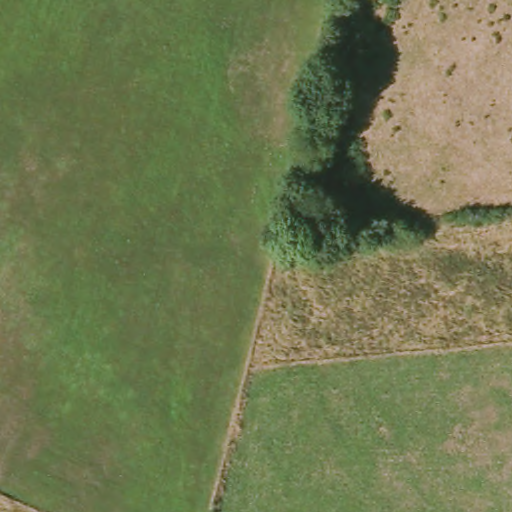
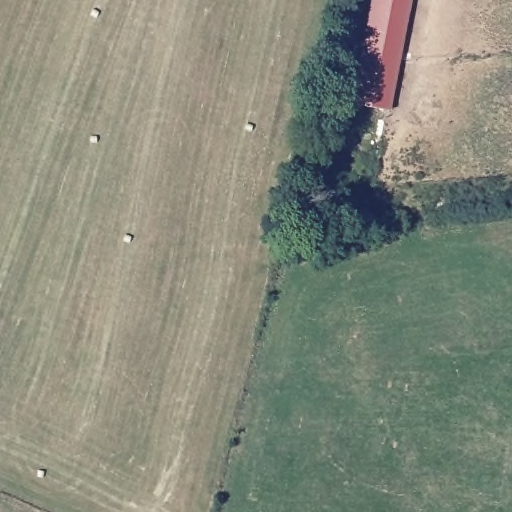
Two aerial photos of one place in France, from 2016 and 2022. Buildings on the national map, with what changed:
new [(349,103),(369,0),(411,0),(391,111),(349,103)]

